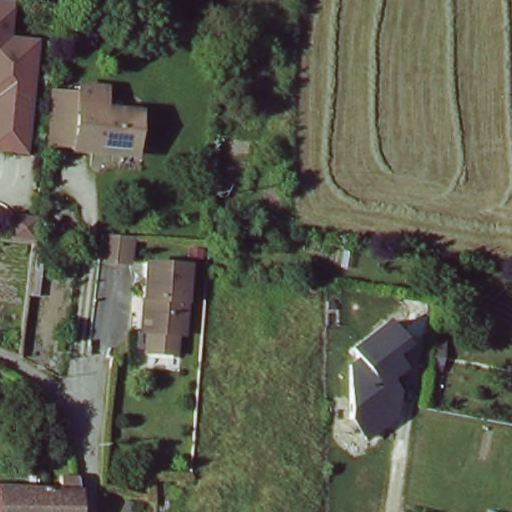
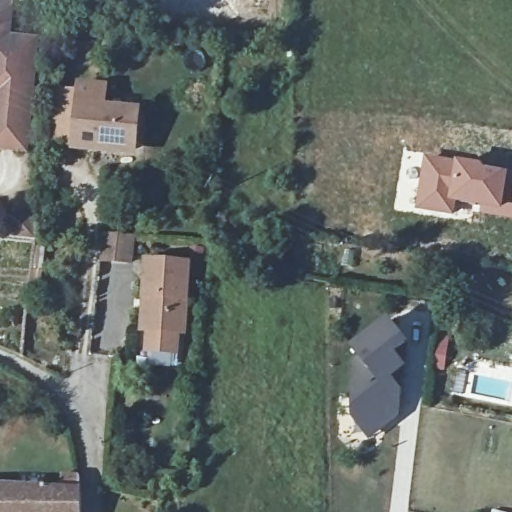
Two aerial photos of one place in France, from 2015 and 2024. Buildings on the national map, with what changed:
unchanged [(23,6),(18,46),(45,47),(31,157),(0,154),(0,4),(20,6),(23,6)]
unchanged [(100,93),(124,96),(125,117),(159,121),(156,156),(121,158),(122,154),(113,153),(113,157),(93,155),(96,130),(99,97),(100,93)]
unchanged [(84,154),(68,151),(68,142),(69,135),(70,127),(73,108),(74,98),(74,94),(99,97),(96,130),(93,155),(84,154)]
new [(512,172),(512,220),(482,216),(484,209),(459,205),(456,217),(417,210),(425,157),(512,172)]
unchanged [(109,257),(110,257),(111,242),(143,245),(141,269),(108,267),(109,257)]
unchanged [(148,287),(148,270),(191,272),(188,313),(186,341),(149,338),(151,307),(146,307),(148,287)]
unchanged [(361,356),(354,347),(390,319),(411,347),(400,357),(409,369),(398,379),(418,407),(391,429),(389,427),(368,441),(354,420),(351,363),(361,356)]
unchanged [(62,490),(61,482),(79,482),(79,512),(46,512),(45,491),(62,490)]
unchanged [(0,490),(45,491),(46,512),(0,512),(0,490)]

